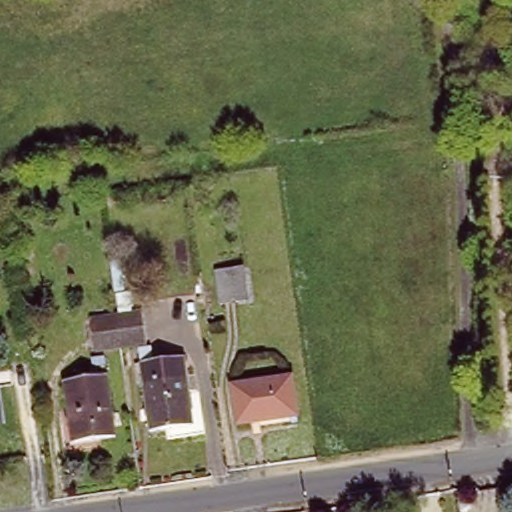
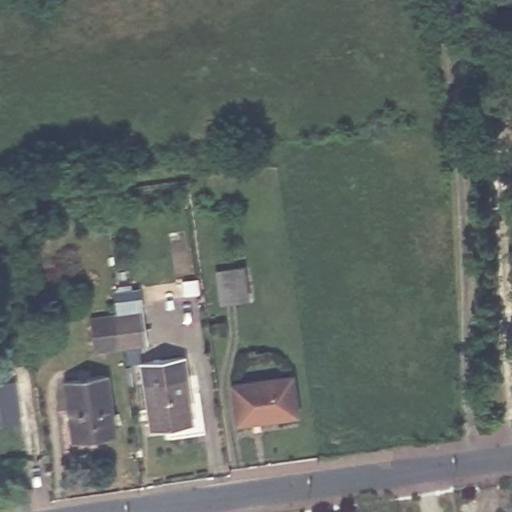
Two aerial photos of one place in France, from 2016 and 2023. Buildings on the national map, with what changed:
unchanged [(247,268),(250,301),(224,304),(219,272),(247,268)]
unchanged [(92,320),(117,316),(142,312),(147,342),(120,346),(96,350),(92,320)]
unchanged [(187,357),(196,426),(152,432),(142,362),(187,357)]
unchanged [(109,376),(117,436),(74,442),(65,382),(109,376)]
unchanged [(289,377),(295,418),(240,426),(234,385),(289,377)]
unchanged [(7,417),(0,418),(0,384),(3,383),(7,417)]

